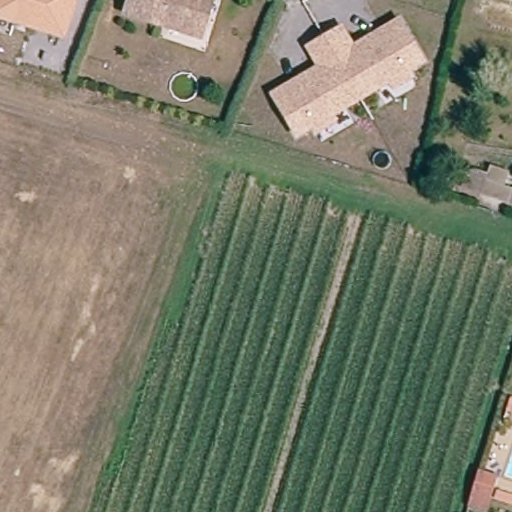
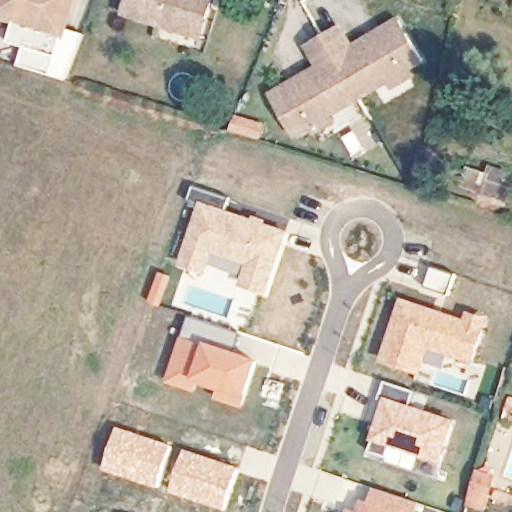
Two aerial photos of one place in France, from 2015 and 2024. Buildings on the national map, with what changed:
unchanged [(0,10),(0,0),(73,0),(64,30),(0,10)]
unchanged [(121,9),(123,0),(207,0),(203,14),(197,33),(157,20),(121,9)]
new [(84,36),(67,75),(19,61),(25,42),(9,37),(16,15),(64,30),(84,36)]
unchanged [(336,28),(339,33),(344,40),(350,49),(357,45),(364,40),(367,45),(382,36),(377,29),(395,19),(419,59),(416,61),(403,69),(407,75),(390,85),(386,79),(357,97),(330,53),(320,38),(336,28)]
unchanged [(330,53),(357,97),(327,115),(331,121),(313,133),(310,126),(293,135),(291,131),(269,95),(286,84),(291,92),(306,83),(302,78),(317,69),(303,47),(320,38),(330,53)]
new [(235,114),(266,124),(261,141),(229,131),(235,114)]
unchanged [(457,175),(477,179),(480,170),(500,175),(496,189),(504,190),(500,209),(453,192),(457,175)]
new [(198,202),(187,199),(191,185),(230,198),(226,209),(260,219),(287,230),(266,296),(236,285),(243,267),(212,254),(206,274),(177,265),(198,202)]
new [(156,270),(171,276),(160,308),(145,303),(156,270)]
new [(400,298),(463,318),(466,309),(488,318),(471,364),(430,350),(420,374),(380,361),(400,298)]
new [(187,317),(241,334),(236,351),(179,335),(187,317)]
new [(179,335),(236,351),(258,359),(242,409),(213,399),(216,392),(198,385),(195,394),(165,384),(179,335)]
new [(387,382),(415,391),(411,404),(456,419),(440,466),(421,459),(417,471),(369,453),(387,382)]
new [(118,427),(173,444),(158,490),(102,471),(118,427)]
new [(184,449),(240,468),(225,512),(169,493),(184,449)]
new [(455,497),(465,501),(475,468),(495,473),(485,512),(463,505),(461,512),(459,512),(450,509),(455,497)]
new [(349,508),(356,511),(361,498),(367,500),(372,487),(420,503),(417,512),(348,512),(349,508)]

